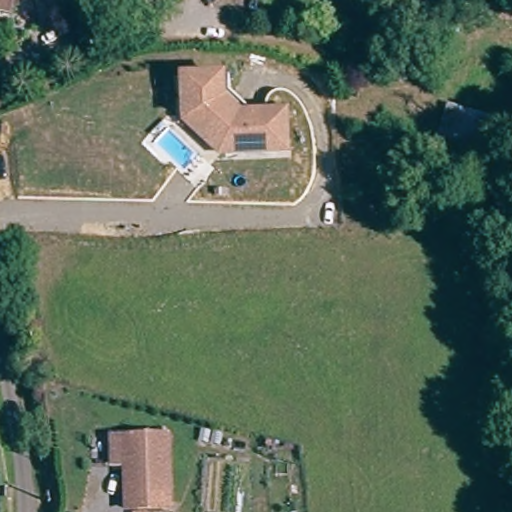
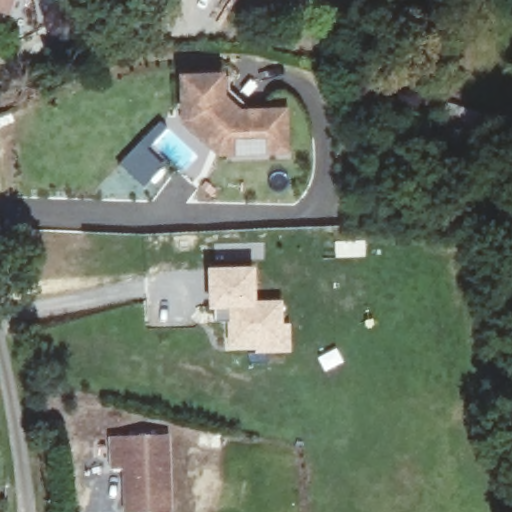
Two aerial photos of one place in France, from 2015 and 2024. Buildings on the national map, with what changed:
unchanged [(20,0),(14,16),(0,12),(0,0),(20,0)]
unchanged [(185,117),(185,74),(225,74),(226,96),(242,111),(255,110),(287,107),(289,150),(232,151),(226,151),(185,117)]
unchanged [(442,140),(453,101),(512,122),(512,156),(510,162),(442,140)]
new [(257,300),(283,300),(285,323),(292,323),(292,352),(256,353),(255,346),(230,347),(230,322),(215,322),(215,310),(210,310),(209,269),(256,267),(257,300)]
unchanged [(183,507),(140,512),(134,465),(122,466),(119,439),(133,438),(175,434),(183,507)]
unchanged [(183,511),(183,512),(177,512),(183,511)]

